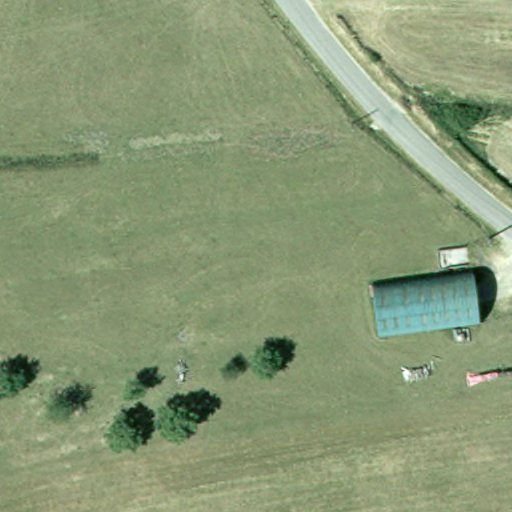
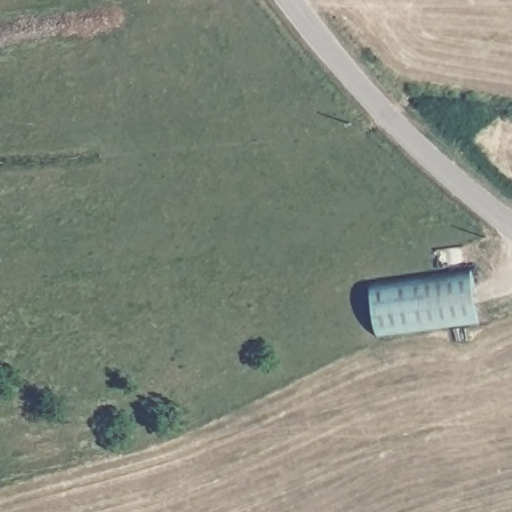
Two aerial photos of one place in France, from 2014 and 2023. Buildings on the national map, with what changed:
unchanged [(479,333),(375,346),(369,290),(474,276),(478,319),(479,333)]

